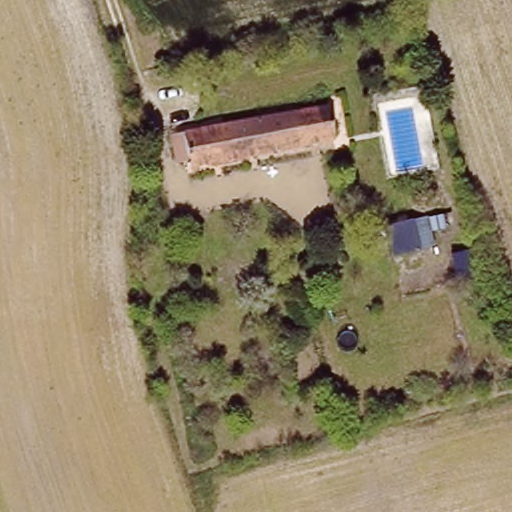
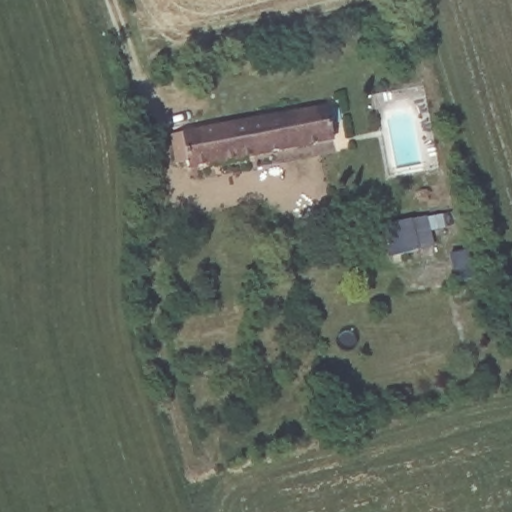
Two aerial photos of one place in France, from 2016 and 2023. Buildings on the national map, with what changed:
unchanged [(336,137),(187,162),(187,155),(177,156),(172,130),(330,104),(336,137)]
unchanged [(389,227),(416,223),(417,230),(421,256),(393,260),(390,238),(389,227)]

